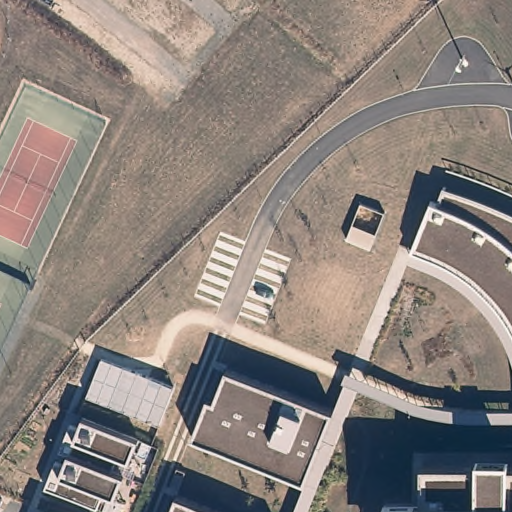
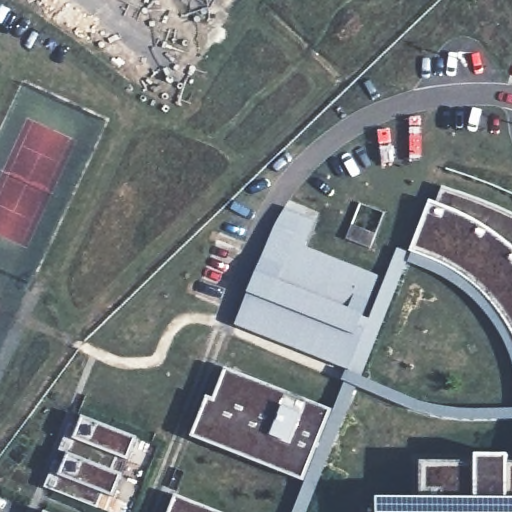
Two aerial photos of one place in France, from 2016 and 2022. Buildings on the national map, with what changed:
unchanged [(486,297),(454,272),(412,252),(431,201),(439,204),(444,189),(512,216),(512,333),(508,323),(486,297)]
new [(234,324),(275,225),(286,206),(316,219),(306,247),(379,276),(363,314),(369,317),(345,369),(234,324)]
new [(454,272),(486,297),(508,323),(512,333),(512,364),(506,345),(493,323),(475,301),(454,285),(444,278),(408,262),(362,377),(404,394),(422,402),(459,409),(512,408),(512,419),(452,420),(432,417),(412,410),(358,387),(308,512),(292,512),(304,480),(332,411),(345,381),(342,380),(345,369),(369,317),(397,248),(412,252),(454,272)]
unchanged [(304,480),(192,437),(208,398),(216,401),(227,369),(332,411),(304,480)]
unchanged [(109,471),(124,476),(115,498),(124,503),(120,512),(108,512),(98,509),(44,490),(71,424),(78,427),(83,417),(139,438),(130,460),(115,454),(109,471)]
unchanged [(512,512),(384,512),(384,500),(423,500),(423,460),(512,461),(512,512)]
unchanged [(177,496),(215,512),(171,512),(177,496)]
unchanged [(46,511),(49,512),(46,512),(46,511)]

